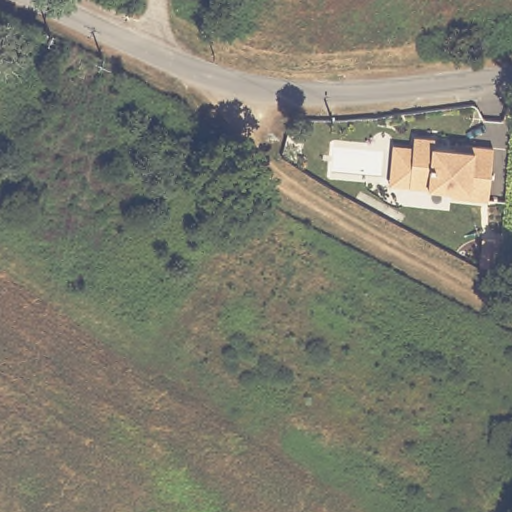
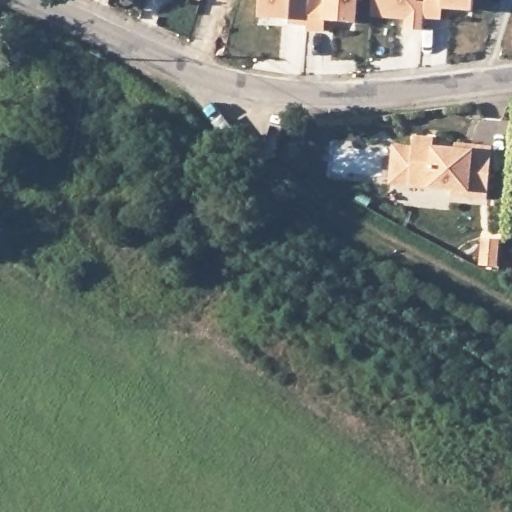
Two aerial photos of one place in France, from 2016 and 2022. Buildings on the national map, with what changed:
new [(261,0),(310,0),(309,5),(308,28),(289,27),(289,22),(259,20),(261,0)]
new [(308,28),(309,5),(325,6),(326,0),(357,0),(356,26),(325,24),(325,35),(308,33),(308,28)]
new [(373,0),(417,0),(417,1),(426,2),(424,17),(424,30),(407,29),(408,18),(372,15),(373,0)]
new [(426,2),(426,0),(473,0),(473,7),(443,5),(442,18),(424,17),(426,2)]
unchanged [(490,200),(453,197),(454,191),(412,188),(392,187),(394,147),(414,148),(415,138),(435,139),(434,148),(457,149),(457,144),(474,146),(494,147),(490,200)]

